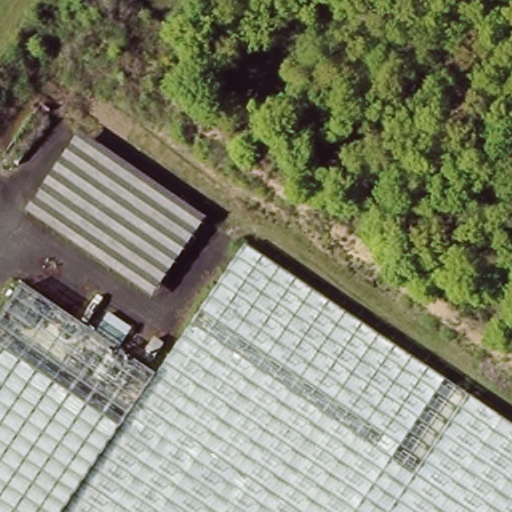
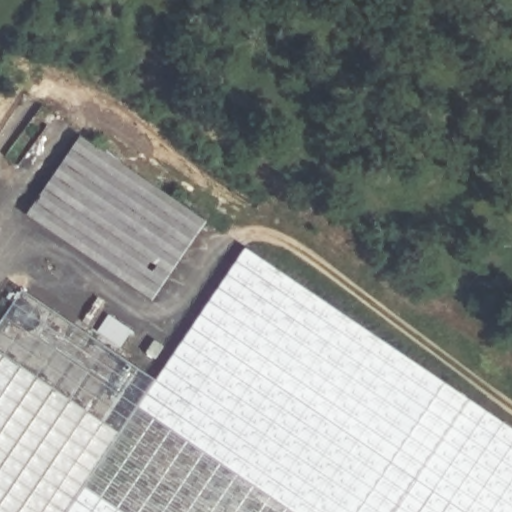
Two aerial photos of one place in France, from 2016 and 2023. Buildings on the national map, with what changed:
unchanged [(156,301),(29,216),(82,137),(208,222),(156,301)]
unchanged [(26,291),(160,382),(249,250),(512,427),(512,512),(0,512),(0,329),(26,291)]
unchanged [(123,347),(103,333),(114,316),(135,331),(123,347)]

